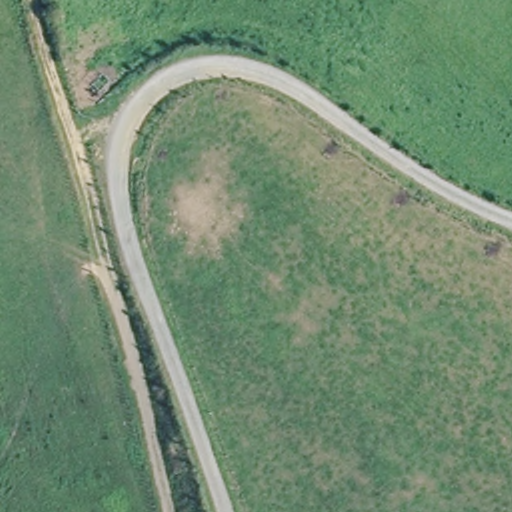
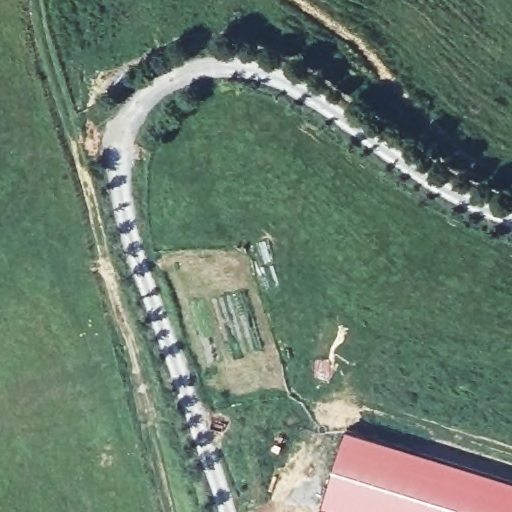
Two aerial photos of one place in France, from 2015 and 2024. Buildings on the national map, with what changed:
new [(346,427),(512,479),(512,512),(317,512),(346,427)]

